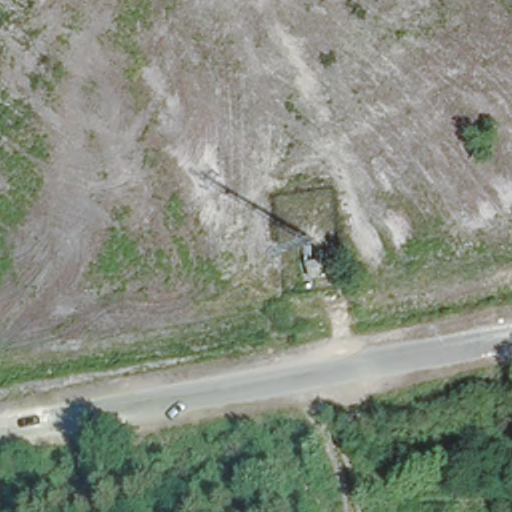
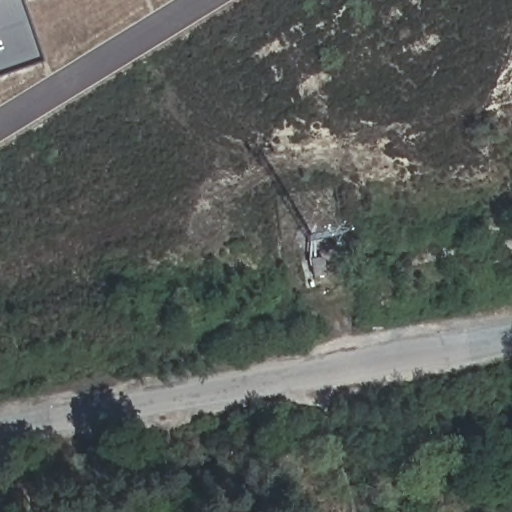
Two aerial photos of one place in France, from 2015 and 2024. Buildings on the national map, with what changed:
new [(39,61),(0,73),(0,0),(19,0),(39,61)]
unchanged [(325,250),(331,275),(312,278),(306,255),(325,250)]

